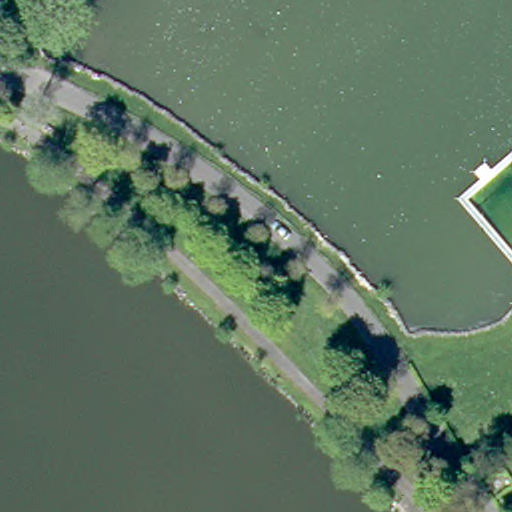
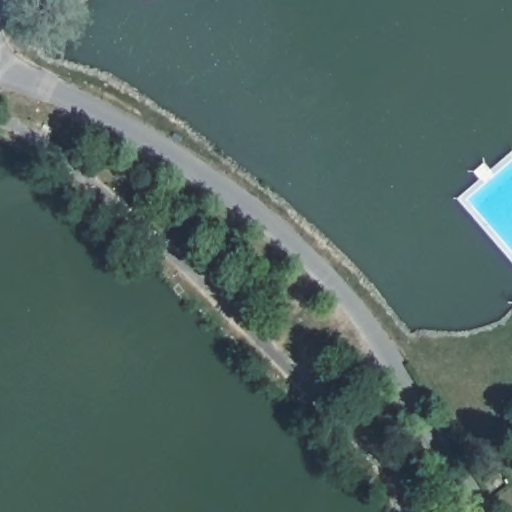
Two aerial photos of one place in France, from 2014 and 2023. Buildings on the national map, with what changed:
[]

